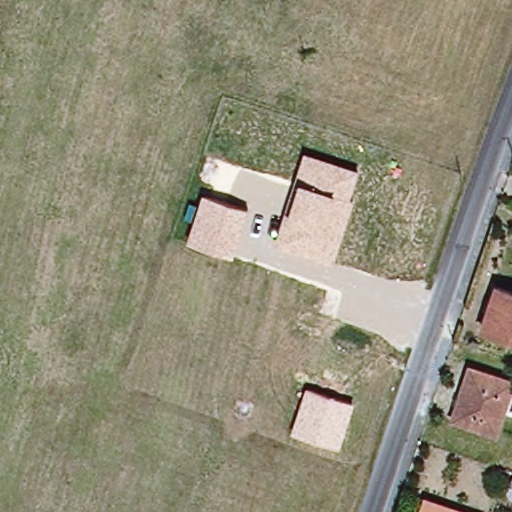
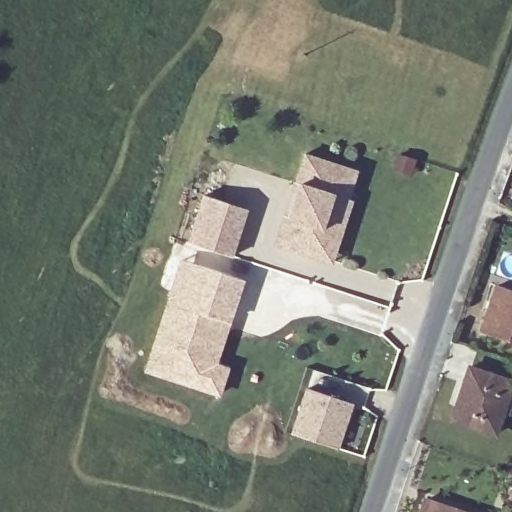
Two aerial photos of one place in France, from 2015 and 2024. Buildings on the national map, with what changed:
unchanged [(358,172),(349,200),(354,201),(333,266),(275,247),(305,153),(358,172)]
unchanged [(250,210),(234,258),(186,244),(201,195),(250,210)]
new [(228,370),(218,400),(145,376),(174,291),(184,260),(200,266),(244,280),(230,322),(215,366),(228,370)]
unchanged [(512,293),(512,341),(486,332),(502,290),(512,293)]
unchanged [(512,382),(512,389),(496,438),(455,425),(472,368),(512,382)]
unchanged [(355,405),(341,449),(291,433),(305,390),(355,405)]
unchanged [(426,512),(429,502),(459,512),(426,512)]

